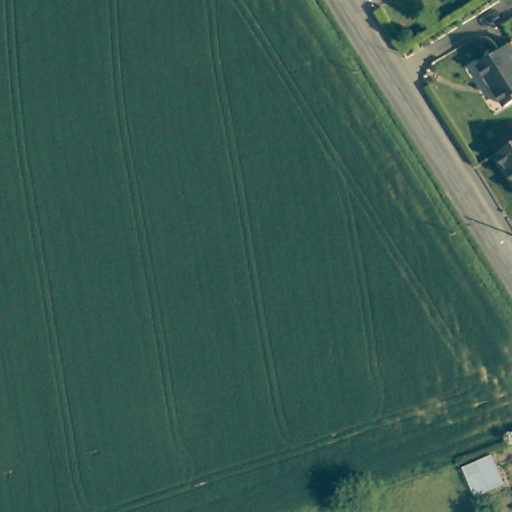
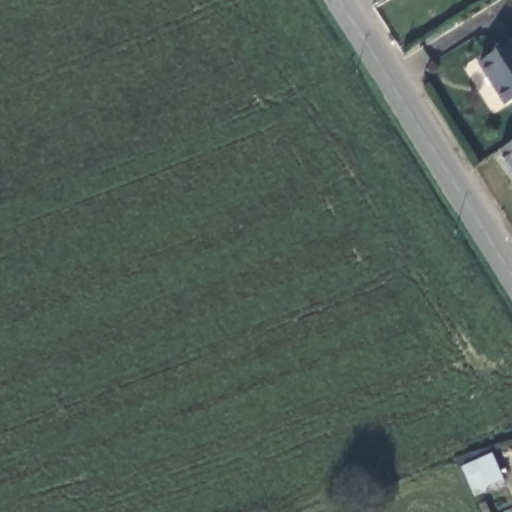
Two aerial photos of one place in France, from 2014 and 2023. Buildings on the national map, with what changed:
unchanged [(480,60),(512,40),(512,99),(507,102),(480,60)]
unchanged [(512,145),(512,173),(499,153),(512,145)]
unchanged [(476,497),(464,466),(494,454),(508,484),(476,497)]

